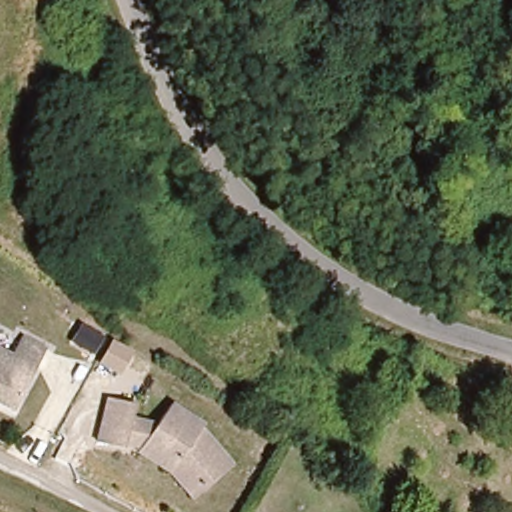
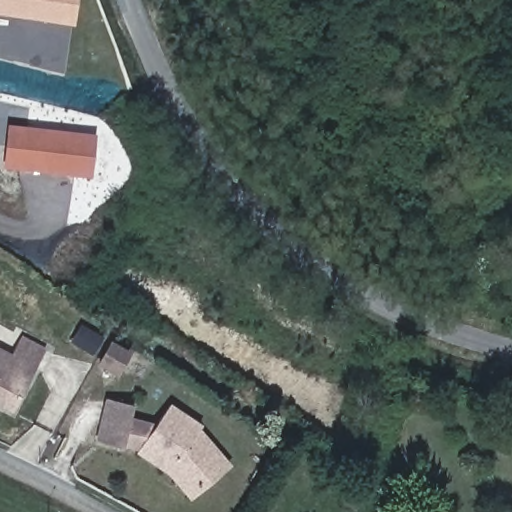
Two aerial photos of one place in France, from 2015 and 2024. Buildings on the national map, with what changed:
new [(0,16),(0,0),(78,0),(75,25),(0,16)]
new [(91,176),(3,167),(8,123),(95,132),(91,176)]
unchanged [(11,413),(0,408),(0,346),(10,352),(19,334),(49,348),(11,413)]
unchanged [(132,351),(117,380),(91,365),(107,338),(132,351)]
unchanged [(189,501),(166,473),(131,449),(96,443),(107,397),(139,404),(136,417),(154,423),(169,402),(201,422),(233,461),(189,501)]

